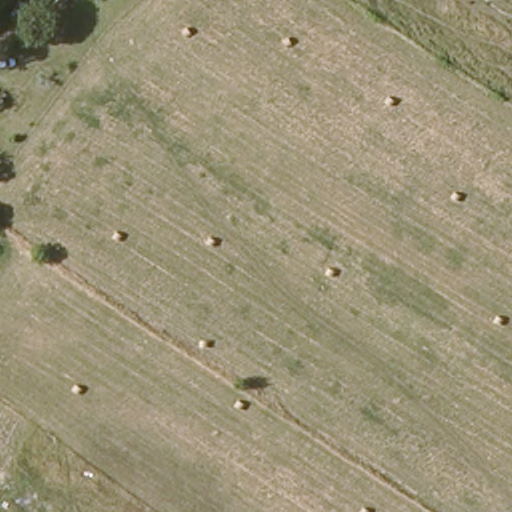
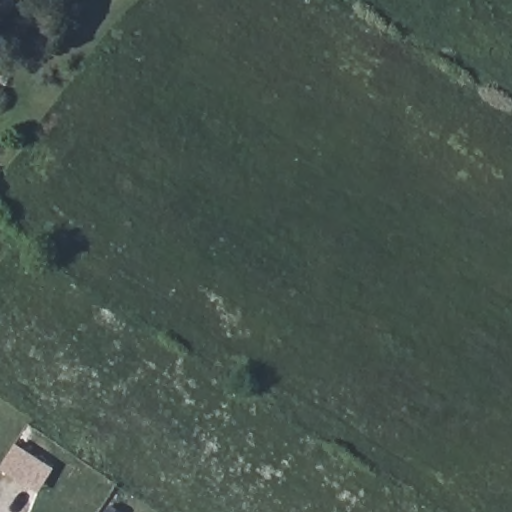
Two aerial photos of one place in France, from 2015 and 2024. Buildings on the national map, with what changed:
new [(39,495),(0,468),(16,443),(53,467),(39,495)]

